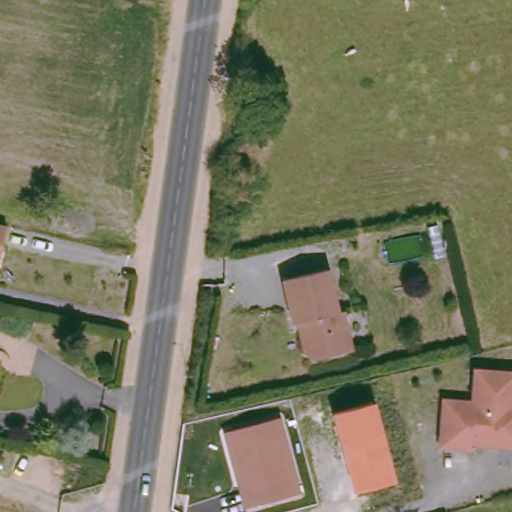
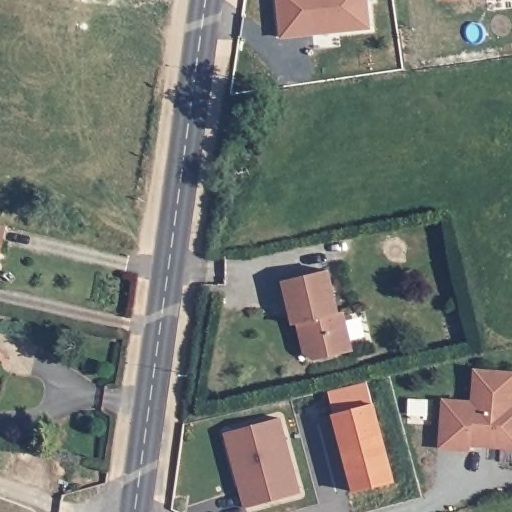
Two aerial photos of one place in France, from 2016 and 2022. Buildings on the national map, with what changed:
new [(277,0),(368,0),(371,28),(281,36),(277,0)]
unchanged [(4,225),(0,243),(0,224),(4,225)]
unchanged [(294,322),(284,278),(328,268),(338,311),(343,310),(351,349),(318,357),(306,349),(301,329),(299,321),(294,322)]
unchanged [(476,368),(512,371),(512,453),(441,446),(443,399),(472,399),(476,368)]
unchanged [(374,402),(396,480),(353,490),(332,414),(374,402)]
unchanged [(300,491),(244,507),(224,433),(279,418),(300,491)]

